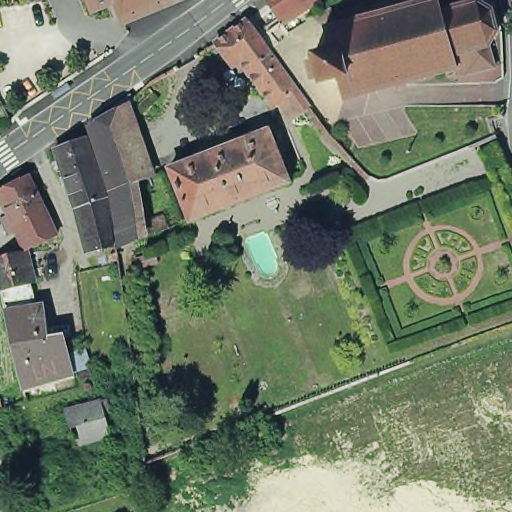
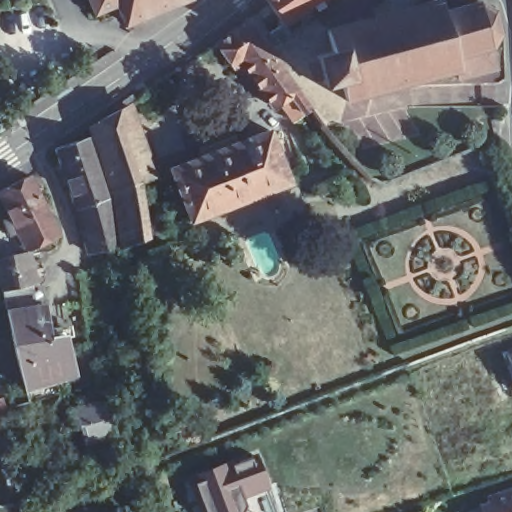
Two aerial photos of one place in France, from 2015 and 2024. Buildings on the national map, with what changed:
unchanged [(140,16),(123,23),(122,24),(113,2),(92,12),(86,0),(179,0),(140,16)]
unchanged [(271,0),(316,0),(285,20),(271,0)]
unchanged [(327,29),(433,0),(441,0),(444,10),(478,1),(480,1),(493,10),(500,32),(492,47),(497,68),(459,78),(457,70),(347,100),(341,79),(325,83),(317,54),(332,50),(327,29)]
unchanged [(318,108),(300,121),(287,103),(281,108),(247,61),(239,67),(222,44),(254,21),(318,108)]
unchanged [(154,177),(134,185),(112,192),(91,127),(129,105),(154,177)]
unchanged [(193,215),(172,163),(272,125),(292,177),(193,215)]
unchanged [(110,198),(78,209),(57,148),(76,142),(90,137),(110,198)]
unchanged [(60,236),(36,253),(48,300),(50,320),(68,317),(73,345),(90,343),(96,382),(26,393),(7,305),(0,281),(0,254),(27,247),(0,196),(0,186),(28,172),(60,236)]
unchanged [(142,240),(121,248),(112,192),(134,185),(142,240)]
unchanged [(116,246),(90,253),(78,209),(110,198),(116,246)]
unchanged [(120,256),(120,260),(115,261),(113,255),(120,253),(120,256)]
new [(512,354),(512,362),(510,355),(512,354)]
unchanged [(80,449),(70,416),(110,405),(119,438),(80,449)]
unchanged [(2,434),(0,434),(0,430),(2,434)]
new [(276,512),(200,512),(187,478),(257,454),(270,489),(276,512)]
unchanged [(23,512),(0,512),(0,469),(19,467),(23,512)]
new [(482,506),(490,503),(488,497),(512,490),(512,512),(473,512),(482,509),(482,506)]

